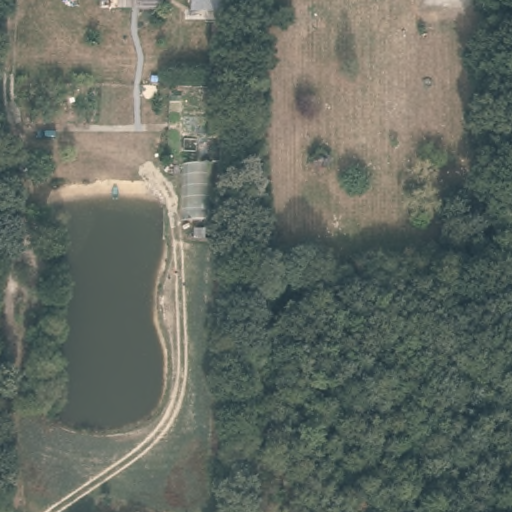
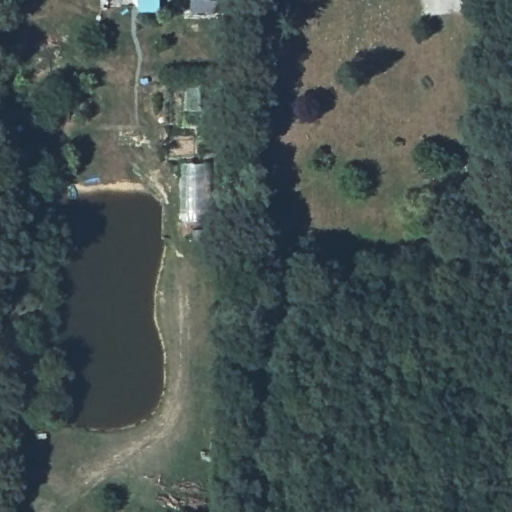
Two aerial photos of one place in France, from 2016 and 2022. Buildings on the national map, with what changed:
[]

